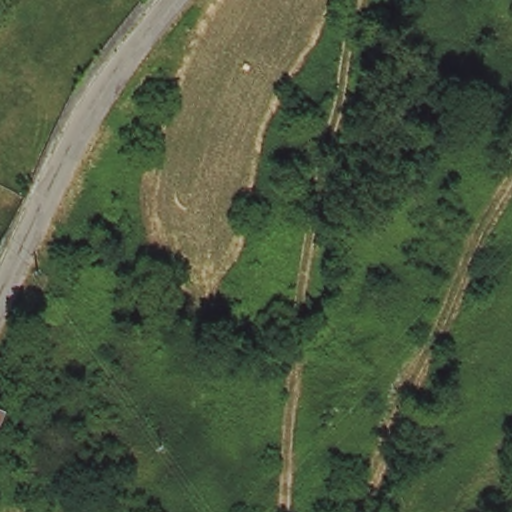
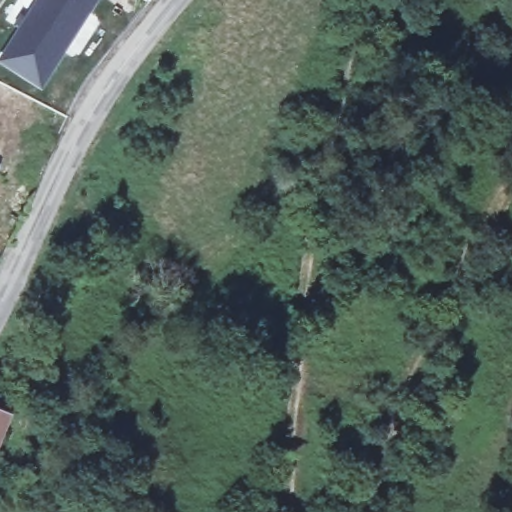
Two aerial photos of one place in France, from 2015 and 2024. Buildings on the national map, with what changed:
new [(0,63),(0,53),(34,0),(97,0),(41,88),(0,63)]
demolished [(10,255),(7,260),(0,256),(0,233),(16,241),(10,255)]
unchanged [(0,418),(0,412),(2,413),(0,418)]
unchanged [(24,445),(41,449),(35,471),(19,468),(24,445)]

